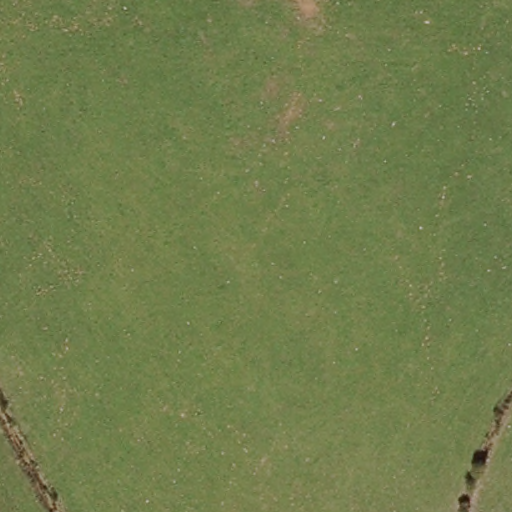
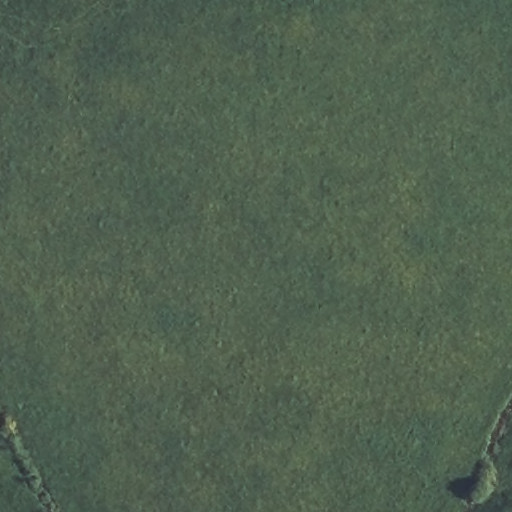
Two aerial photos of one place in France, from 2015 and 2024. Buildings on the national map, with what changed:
[]

